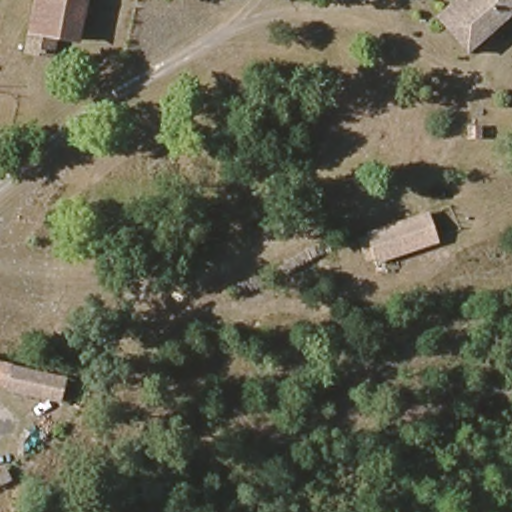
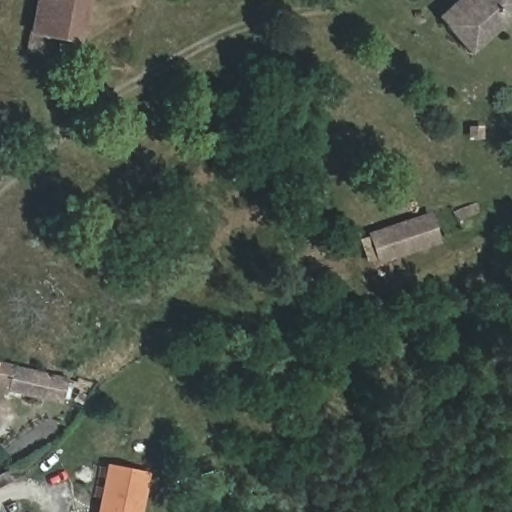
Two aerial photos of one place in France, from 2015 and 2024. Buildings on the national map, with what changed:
unchanged [(73,48),(56,44),(53,61),(22,54),(34,0),(83,0),(73,48)]
unchanged [(437,17),(456,0),(512,0),(512,16),(468,55),(437,17)]
unchanged [(422,213),(435,237),(408,251),(381,265),(369,239),(393,227),(422,213)]
unchanged [(12,368),(67,380),(67,382),(77,385),(72,406),(7,395),(12,368)]
new [(148,473),(141,512),(95,512),(105,465),(148,473)]

